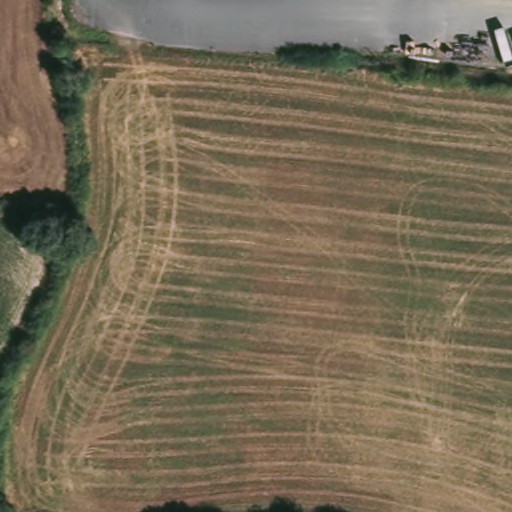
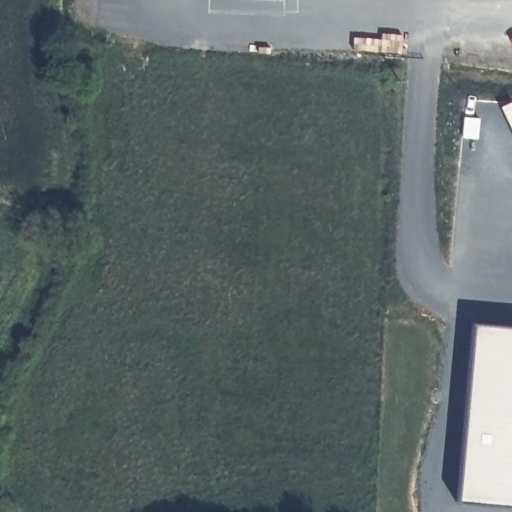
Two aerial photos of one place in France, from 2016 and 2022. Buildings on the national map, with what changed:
new [(458,498),(473,324),(512,327),(512,503),(458,498)]

